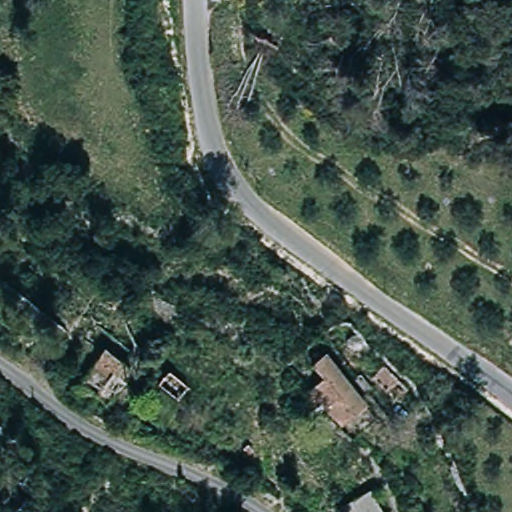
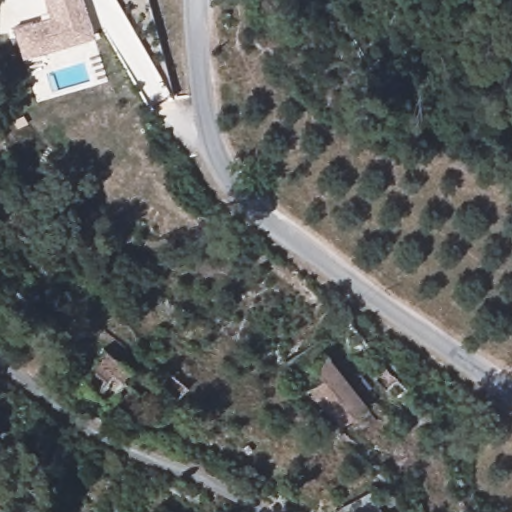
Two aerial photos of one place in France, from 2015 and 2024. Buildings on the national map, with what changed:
new [(13,28),(50,15),(45,0),(83,0),(95,35),(23,59),(13,28)]
unchanged [(71,399),(71,398),(94,367),(106,349),(131,369),(122,379),(126,383),(109,405),(101,398),(90,410),(71,399)]
unchanged [(315,378),(305,365),(318,357),(361,407),(337,427),(303,386),(315,378)]
unchanged [(385,364),(408,388),(395,399),(373,374),(385,364)]
unchanged [(154,382),(164,365),(186,379),(176,394),(154,382)]
unchanged [(368,491),(381,512),(336,512),(335,511),(368,491)]
unchanged [(395,509),(422,506),(423,512),(395,512),(395,509)]

